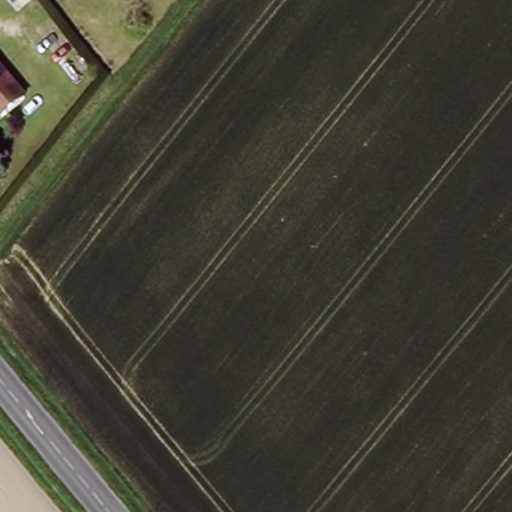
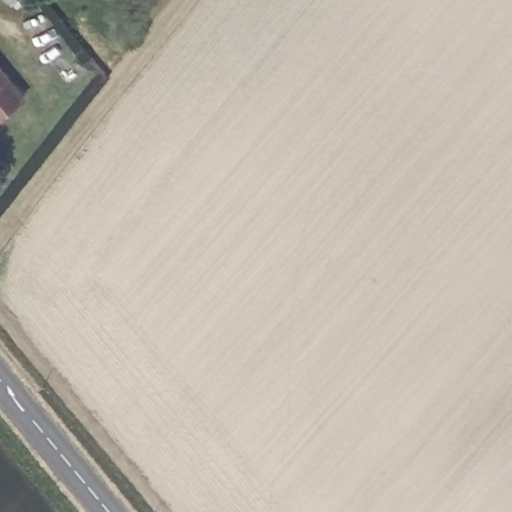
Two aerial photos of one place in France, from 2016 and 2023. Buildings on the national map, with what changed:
unchanged [(0,112),(0,59),(31,97),(5,118),(0,112)]

